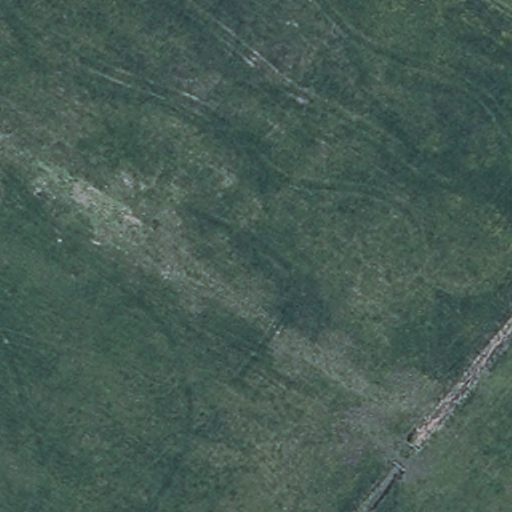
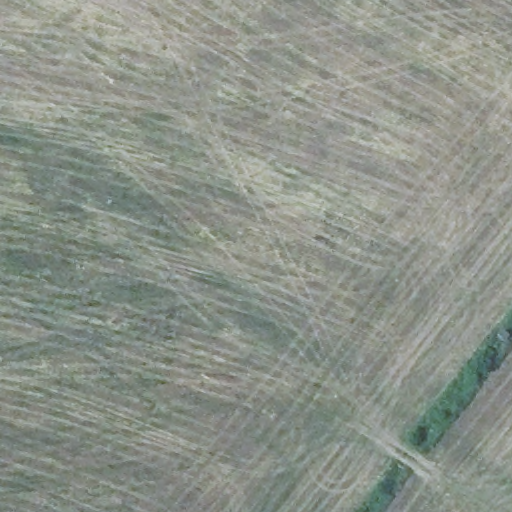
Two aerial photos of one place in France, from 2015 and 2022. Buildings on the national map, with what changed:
unchanged [(414,402),(430,387),(439,395),(425,415),(414,402)]

